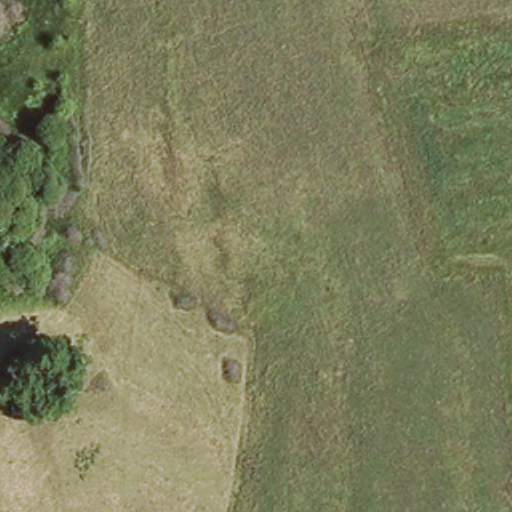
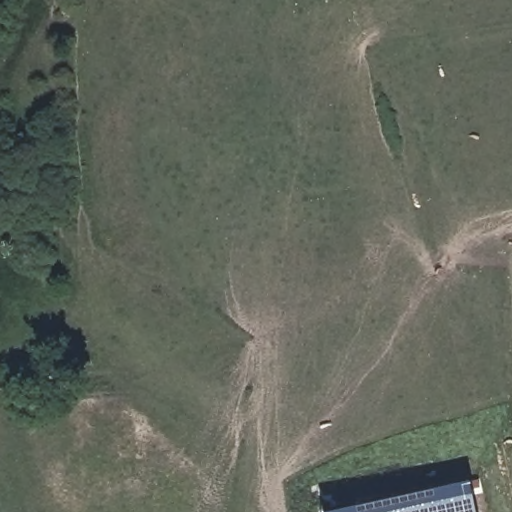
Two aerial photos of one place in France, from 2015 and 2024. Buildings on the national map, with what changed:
new [(317,509),(468,479),(475,512),(318,512),(317,509)]

